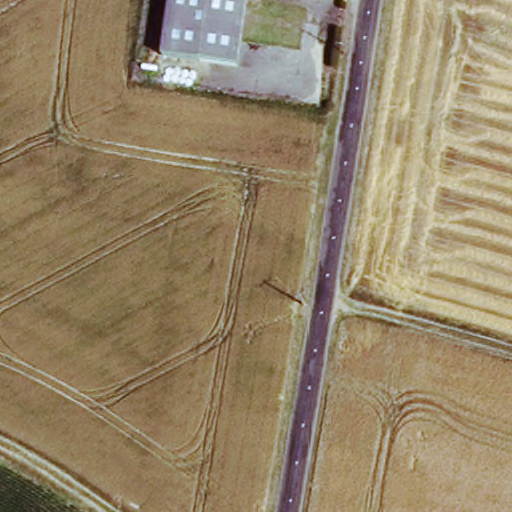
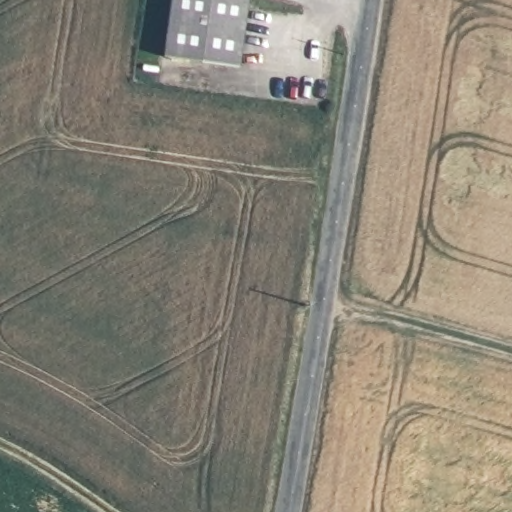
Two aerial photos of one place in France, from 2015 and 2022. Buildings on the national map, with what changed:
unchanged [(170,0),(247,0),(238,69),(162,56),(170,0)]

